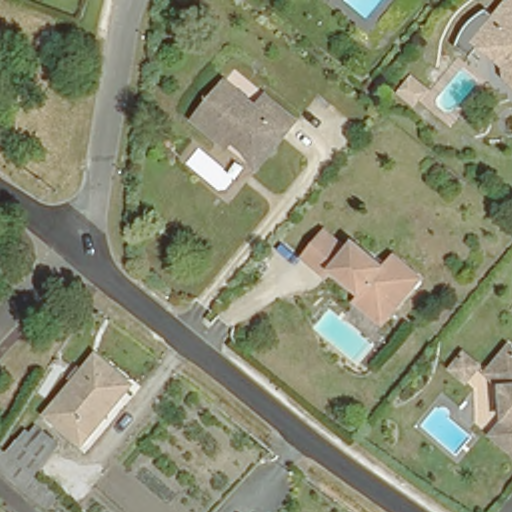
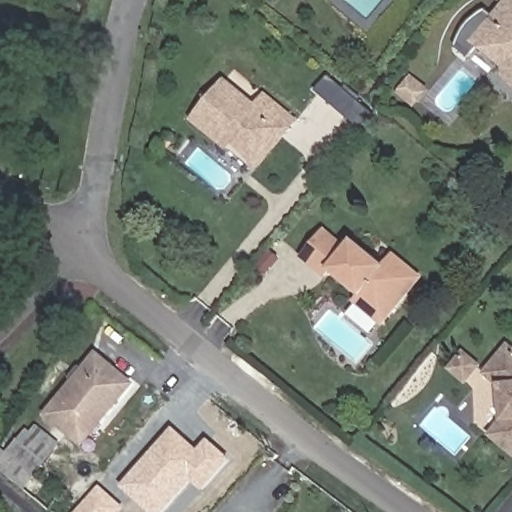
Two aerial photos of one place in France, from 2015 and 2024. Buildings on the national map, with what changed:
unchanged [(512,84),(499,73),(502,65),(472,39),(503,0),(512,0),(512,84)]
unchanged [(188,120),(222,82),(252,109),(261,98),(292,125),(281,136),(276,131),(260,150),(237,154),(222,139),(215,145),(188,120)]
unchanged [(321,230),(341,248),(348,240),(381,268),(391,257),(418,281),(379,325),(351,302),(357,296),(325,270),(320,275),(298,256),(321,230)]
unchanged [(500,414),(496,387),(480,373),(502,346),(512,354),(512,455),(486,432),(500,414)]
unchanged [(77,369),(95,348),(128,378),(111,398),(77,369)]
unchanged [(472,367),(459,382),(444,370),(457,354),(472,367)]
unchanged [(78,436),(43,406),(77,369),(111,398),(78,436)]
unchanged [(4,441),(9,450),(27,418),(58,443),(37,472),(61,493),(47,507),(0,468),(0,450),(4,441)]
new [(175,427),(200,450),(210,439),(235,460),(207,493),(194,482),(168,512),(151,512),(122,488),(175,427)]
new [(102,486),(128,508),(125,512),(79,512),(102,486)]

